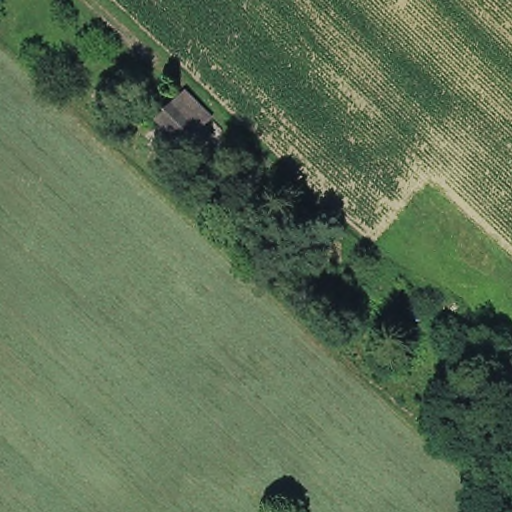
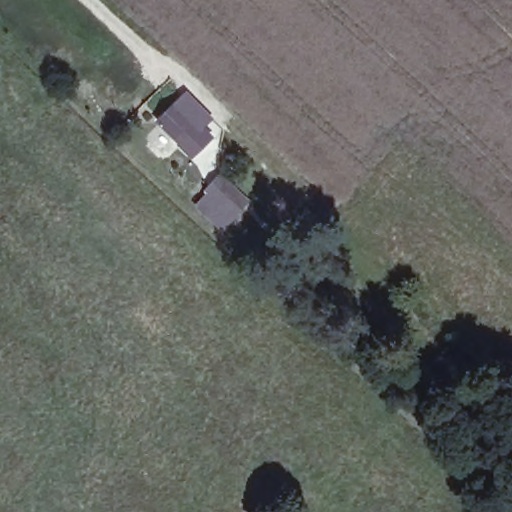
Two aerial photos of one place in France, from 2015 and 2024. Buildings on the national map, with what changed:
unchanged [(203,136),(191,125),(190,126),(170,106),(184,91),(205,111),(204,112),(215,123),(203,136)]
new [(235,186),(227,195),(243,209),(223,230),(196,205),(221,174),(235,186)]

